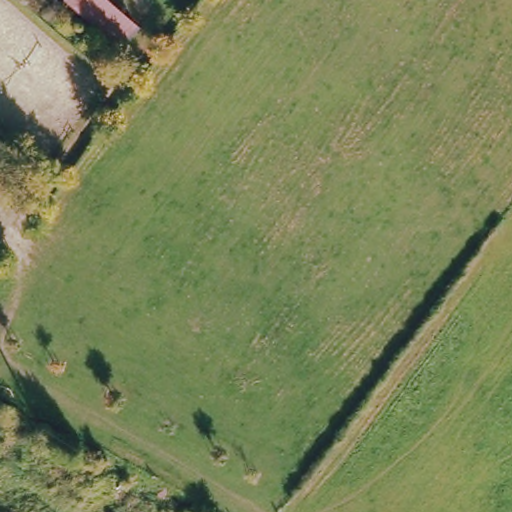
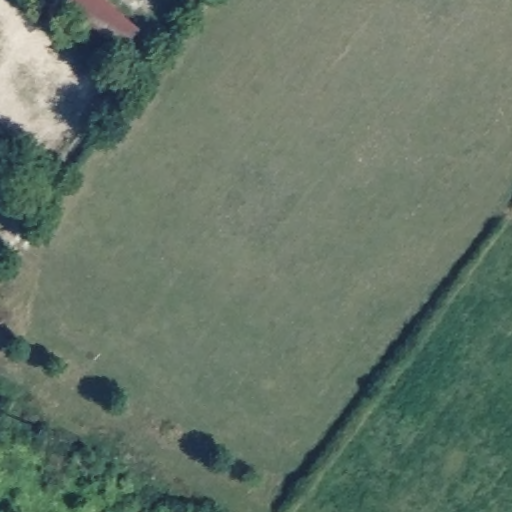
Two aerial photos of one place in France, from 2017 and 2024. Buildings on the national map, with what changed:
unchanged [(128,50),(68,5),(71,0),(105,0),(144,29),(128,50)]

